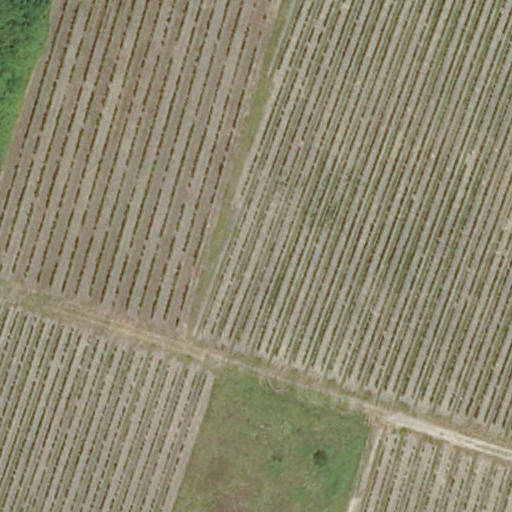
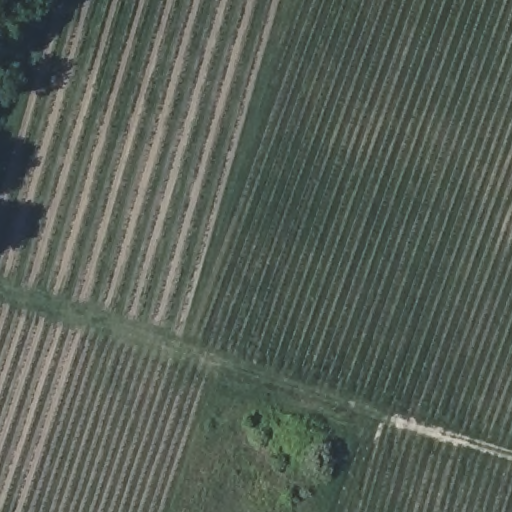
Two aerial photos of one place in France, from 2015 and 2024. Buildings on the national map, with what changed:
[]

